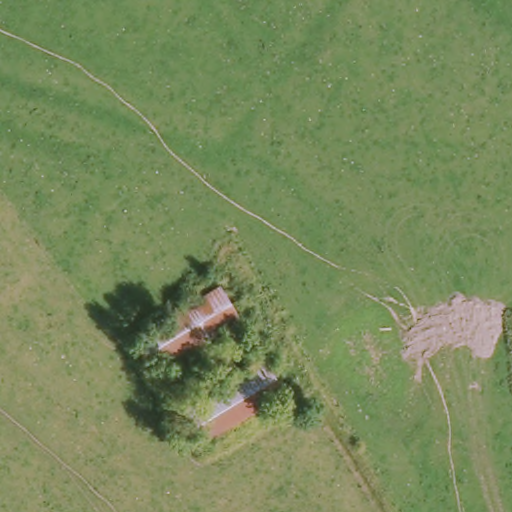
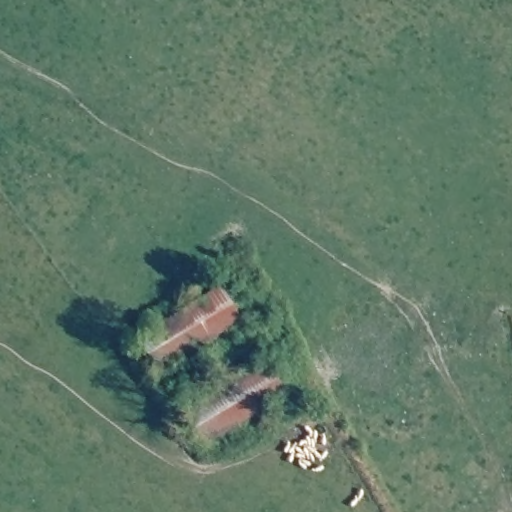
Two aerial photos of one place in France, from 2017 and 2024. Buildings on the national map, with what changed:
unchanged [(134,334),(218,282),(241,320),(156,372),(134,334)]
unchanged [(284,393),(199,444),(182,405),(261,356),(284,393)]

